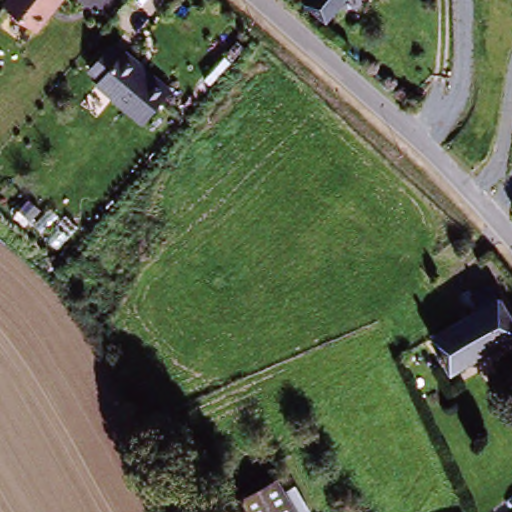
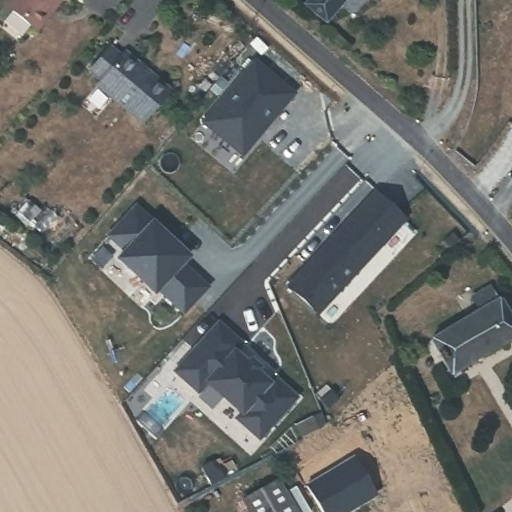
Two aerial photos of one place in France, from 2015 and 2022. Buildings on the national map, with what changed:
unchanged [(6,6),(10,0),(62,0),(37,31),(6,6)]
unchanged [(347,0),(327,25),(302,8),(307,0),(347,0)]
unchanged [(145,124),(88,79),(109,48),(119,54),(125,48),(172,89),(145,124)]
demolished [(197,129),(261,49),(275,60),(252,88),(261,93),(215,144),(197,129)]
new [(201,122),(252,60),(292,93),(240,154),(201,122)]
new [(405,222),(317,317),(287,289),(375,194),(405,222)]
new [(120,254),(127,247),(111,232),(137,202),(175,237),(177,234),(180,237),(176,242),(189,254),(184,259),(210,283),(186,309),(161,284),(157,288),(120,254)]
unchanged [(430,340),(432,339),(451,330),(447,322),(457,317),(462,325),(470,321),(457,296),(470,289),(470,290),(479,303),(497,294),(503,305),(512,321),(512,338),(445,370),(430,340)]
new [(274,378),(297,399),(260,439),(237,419),(242,414),(208,383),(199,393),(184,379),(176,372),(195,351),(220,324),(242,344),(236,353),(270,384),(274,378)]
new [(252,360),(261,368),(257,372),(248,364),(252,360)]
new [(305,487),(352,458),(377,497),(355,512),(321,512),(305,487)]
unchanged [(279,479),(298,512),(253,512),(244,496),(279,479)]

